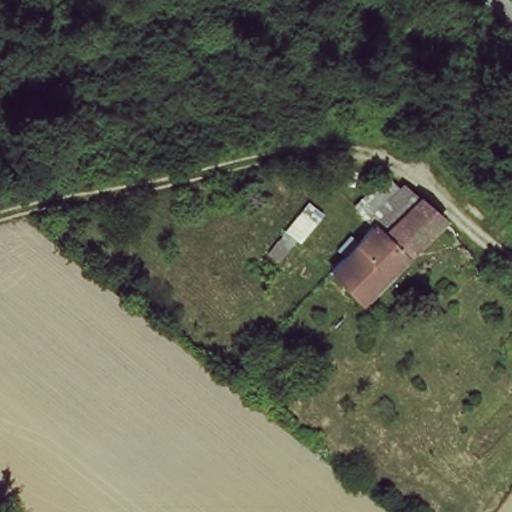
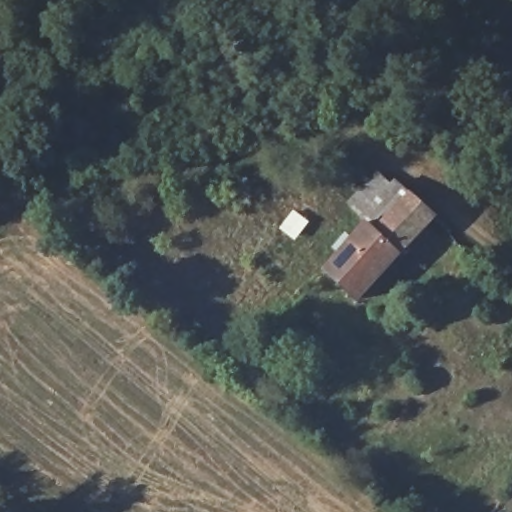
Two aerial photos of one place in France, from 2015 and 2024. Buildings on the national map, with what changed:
unchanged [(360,211),(392,172),(404,181),(440,216),(408,252),(362,303),(328,268),(370,219),(360,211)]

